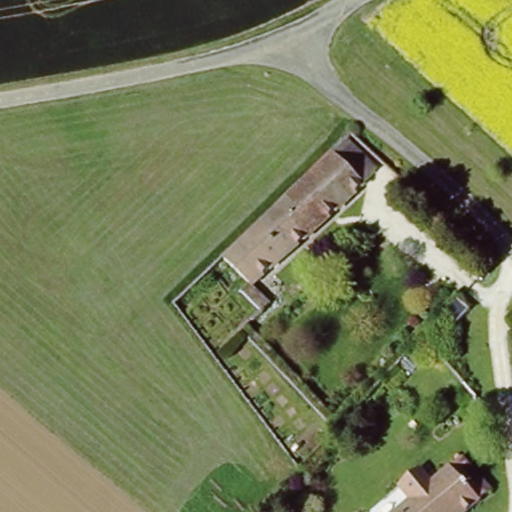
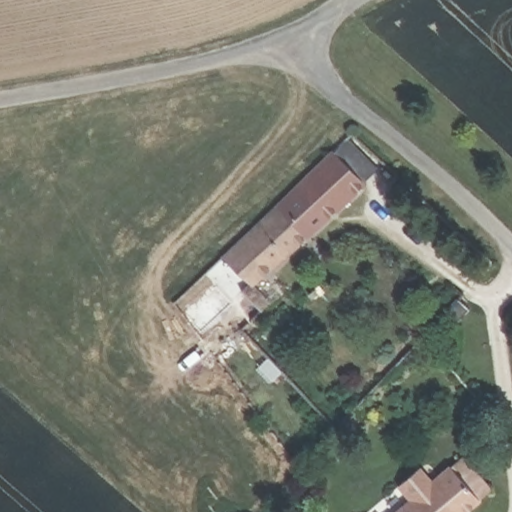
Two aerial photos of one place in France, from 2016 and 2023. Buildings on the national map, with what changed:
unchanged [(363,178),(256,282),(273,298),(258,312),(239,294),(253,279),(231,257),(331,151),(363,178)]
unchanged [(415,507),(397,486),(419,468),(426,476),(438,466),(446,474),(467,457),(494,488),(468,512),(409,512),(415,507)]

